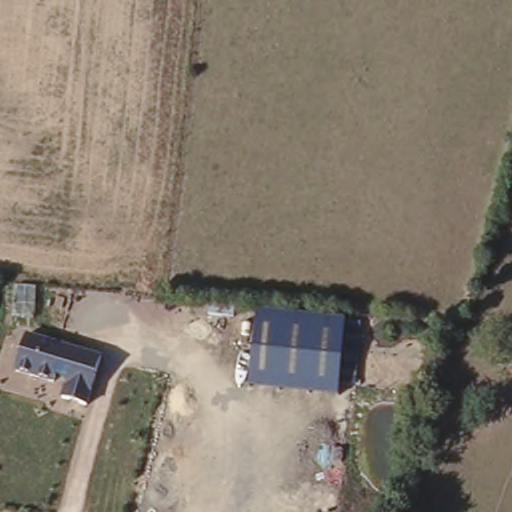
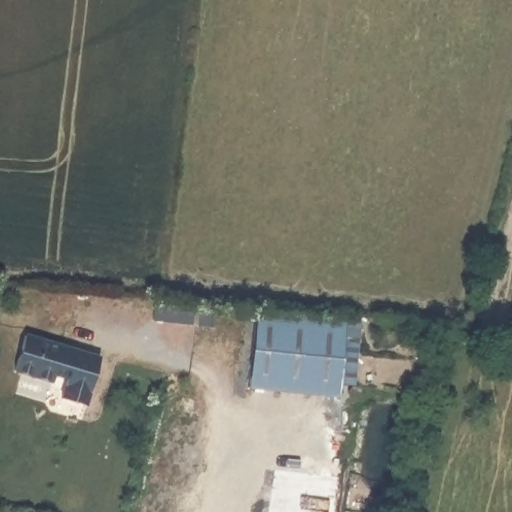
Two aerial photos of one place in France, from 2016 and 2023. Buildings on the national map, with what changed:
unchanged [(256,315),(346,322),(338,395),(249,386),(256,315)]
unchanged [(20,330),(102,358),(87,412),(56,404),(59,389),(7,372),(20,330)]

